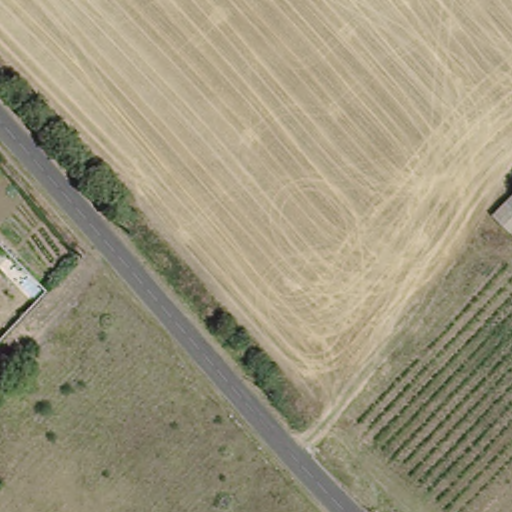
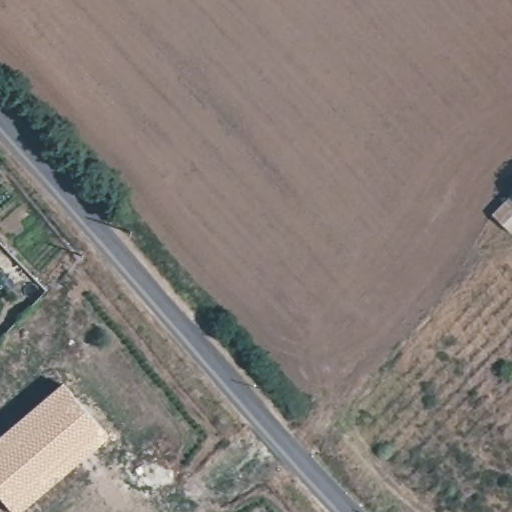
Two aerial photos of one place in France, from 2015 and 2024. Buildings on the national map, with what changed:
unchanged [(510,237),(500,230),(492,223),(489,220),(512,197),(512,234),(510,237)]
new [(109,436),(20,512),(15,512),(0,495),(0,438),(62,384),(109,436)]

